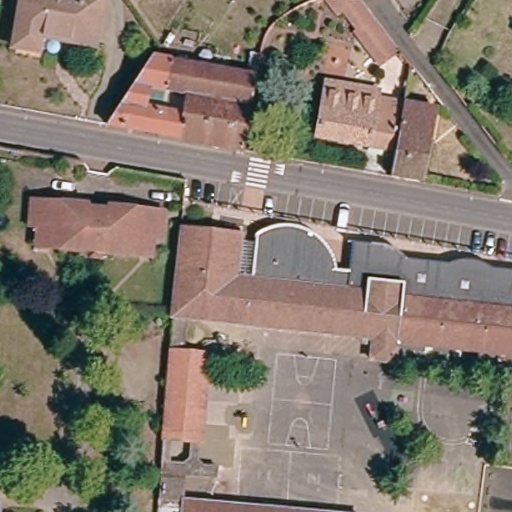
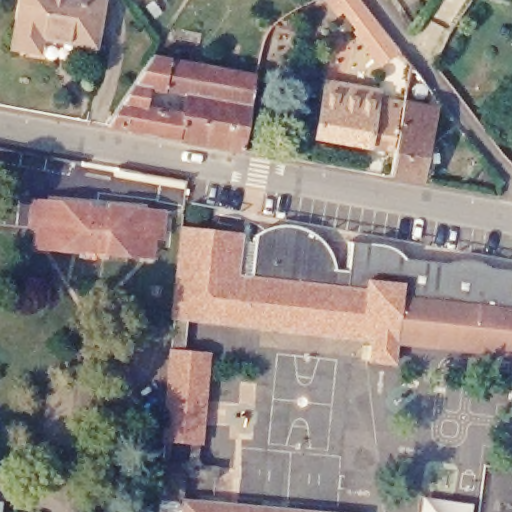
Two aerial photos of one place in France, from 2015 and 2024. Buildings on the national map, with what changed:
unchanged [(106,0),(98,47),(45,39),(42,52),(18,47),(27,0),(106,0)]
unchanged [(388,58),(375,41),(378,39),(353,9),(343,16),(329,0),(363,0),(400,48),(388,58)]
unchanged [(111,125),(156,57),(258,77),(260,77),(248,151),(185,141),(185,138),(170,135),(111,125)]
unchanged [(396,152),(321,139),(330,82),(385,93),(384,99),(406,101),(396,152)]
unchanged [(439,110),(425,183),(396,178),(410,106),(439,110)]
unchanged [(140,256),(49,249),(39,249),(40,230),(31,229),(33,203),(162,212),(160,238),(151,237),(150,256),(140,256)]
unchanged [(259,246),(259,237),(267,233),(276,232),(288,230),(302,230),(313,232),(323,234),(335,244),(338,251),(340,258),(340,271),(347,272),(351,244),(398,248),(405,250),(410,254),(411,256),(411,259),(454,266),(460,262),(470,260),(478,261),(485,263),(492,266),(495,269),(512,270),(512,356),(401,344),(399,363),(376,361),(377,341),(193,319),(179,318),(187,228),(244,236),(244,244),(259,246)]
unchanged [(193,319),(190,352),(212,354),(204,446),(168,444),(179,318),(193,319)]
unchanged [(204,446),(204,462),(208,466),(222,467),(221,485),(165,481),(168,444),(204,446)]
new [(422,495),(476,503),(475,512),(420,512),(422,495)]
unchanged [(183,512),(162,512),(162,501),(186,502),(183,512)]
new [(2,503),(2,512),(0,512),(0,502),(2,503)]
unchanged [(285,512),(189,512),(189,504),(285,512)]

